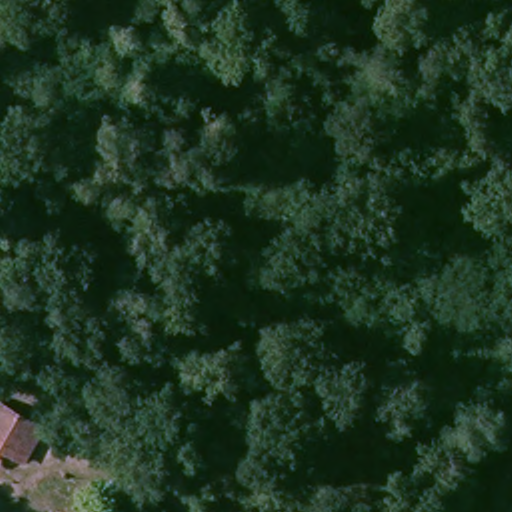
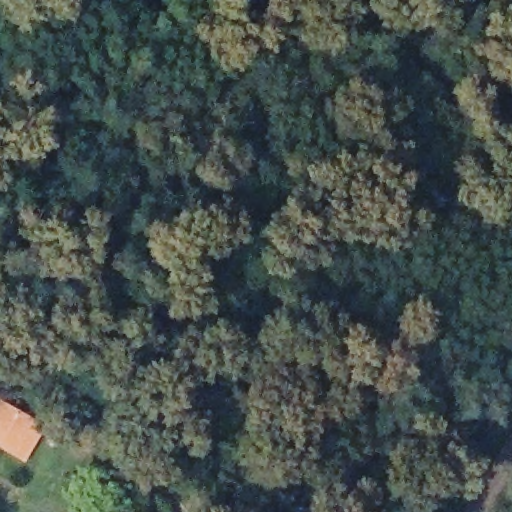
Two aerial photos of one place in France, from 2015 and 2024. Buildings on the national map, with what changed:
unchanged [(40,422),(20,457),(0,446),(0,401),(40,422)]

